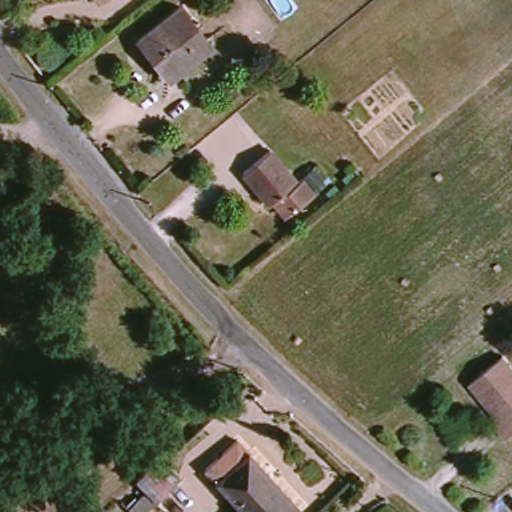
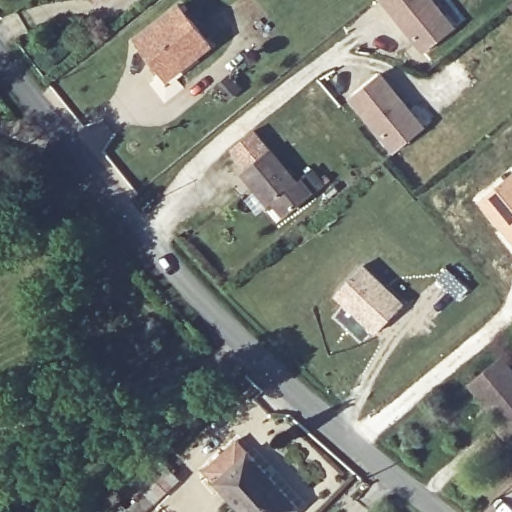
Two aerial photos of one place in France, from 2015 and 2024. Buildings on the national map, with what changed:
unchanged [(101,1),(100,0),(102,0),(101,1)]
new [(456,26),(423,52),(380,0),(434,0),(456,26)]
unchanged [(182,7),(211,43),(171,74),(141,38),(182,7)]
new [(381,73),(423,129),(393,152),(351,96),(381,73)]
unchanged [(243,184),(232,171),(260,148),(287,180),(293,175),(305,189),(278,212),(266,198),(259,205),(243,184)]
new [(512,174),(512,246),(491,220),(496,214),(484,198),(512,174)]
new [(363,263),(405,302),(375,334),(332,297),(363,263)]
unchanged [(512,366),(512,437),(506,442),(492,427),(499,421),(470,383),(505,356),(512,366)]
unchanged [(293,512),(246,512),(206,466),(237,439),(298,508),(293,512)]
unchanged [(182,474),(161,496),(144,480),(165,458),(166,458),(182,474)]

